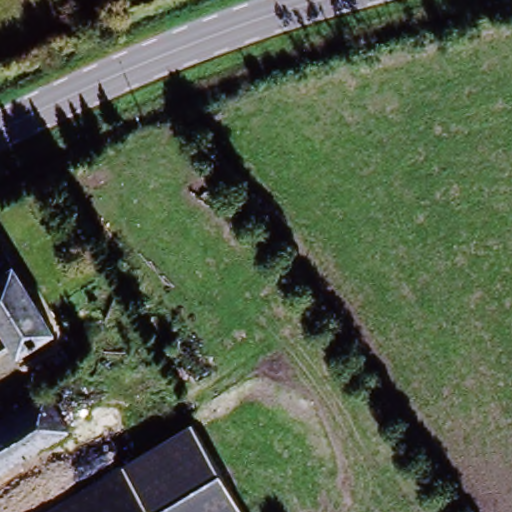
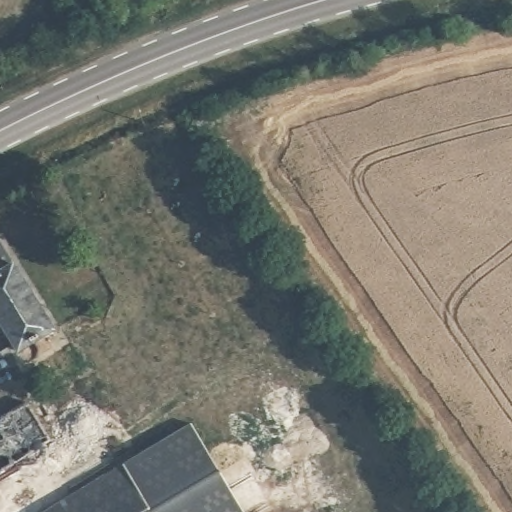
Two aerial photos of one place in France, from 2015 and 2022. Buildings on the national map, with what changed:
unchanged [(54,338),(18,360),(0,330),(0,249),(54,338)]
unchanged [(73,438),(0,482),(0,427),(49,398),(73,438)]
unchanged [(208,478),(228,512),(141,512),(114,466),(179,428),(208,478)]
unchanged [(141,512),(37,512),(114,466),(141,512)]

